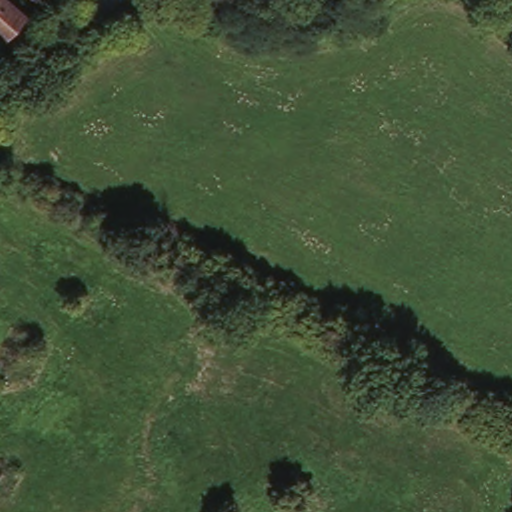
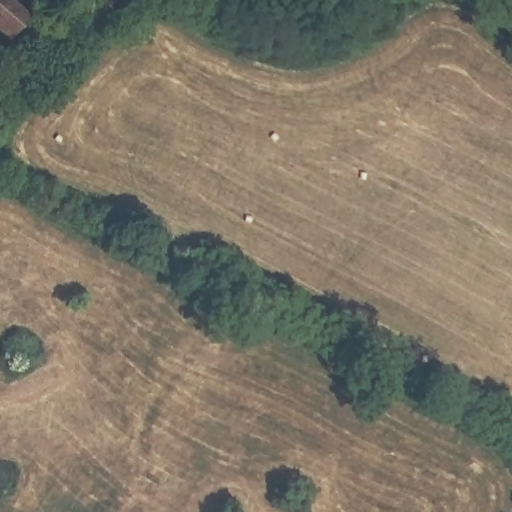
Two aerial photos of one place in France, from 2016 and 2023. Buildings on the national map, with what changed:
unchanged [(6,36),(0,31),(0,0),(8,0),(25,15),(6,36)]
unchanged [(46,343),(20,372),(3,354),(28,327),(46,343)]

